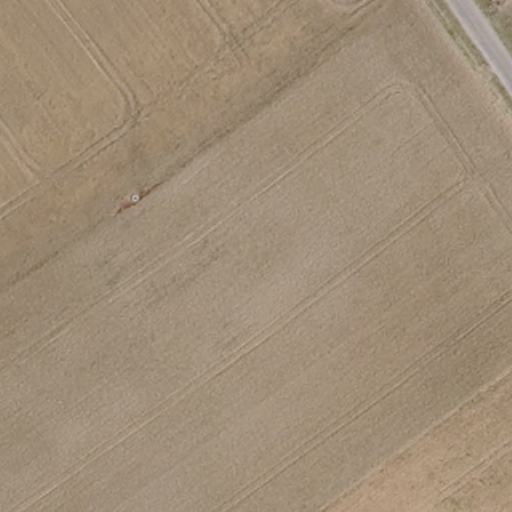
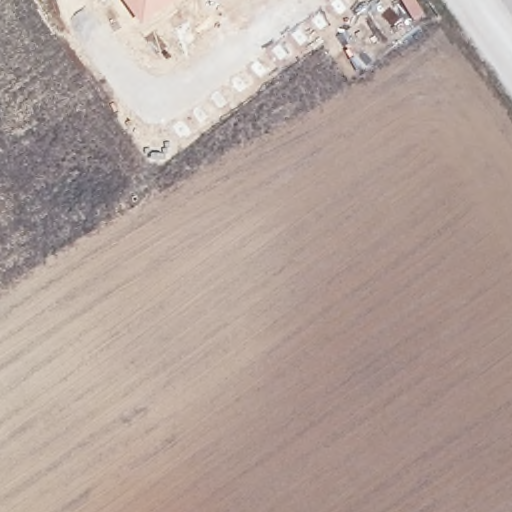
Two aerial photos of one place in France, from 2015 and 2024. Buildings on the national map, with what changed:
new [(121,0),(177,0),(140,25),(121,0)]

